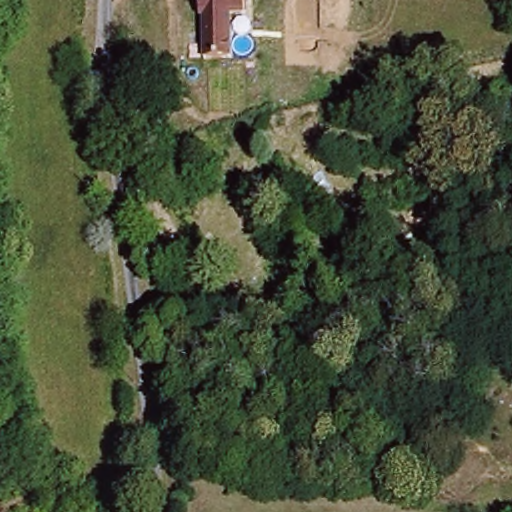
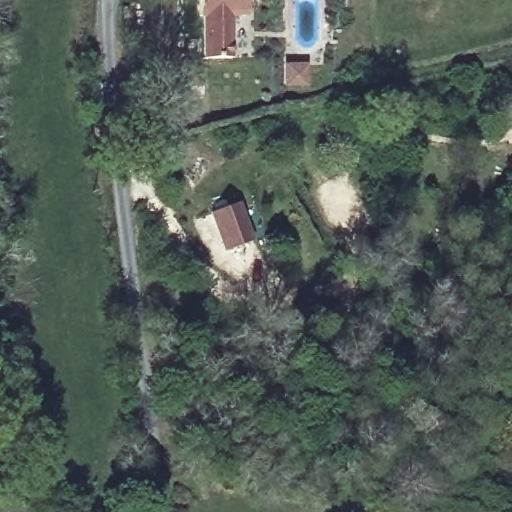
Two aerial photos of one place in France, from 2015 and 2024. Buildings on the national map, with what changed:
unchanged [(200,0),(246,0),(247,14),(230,14),(232,57),(205,57),(205,14),(200,13),(200,0)]
new [(242,200),(250,235),(232,249),(217,211),(242,200)]

